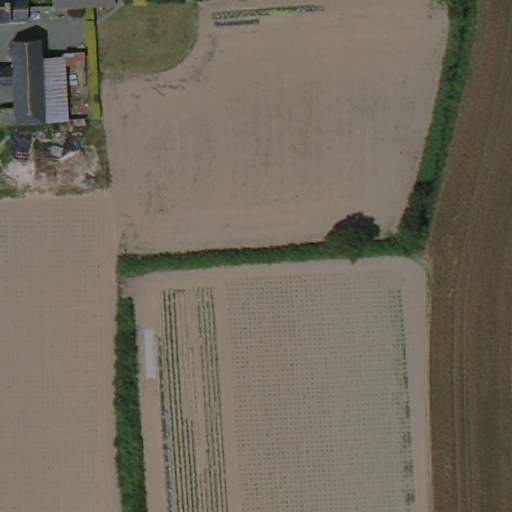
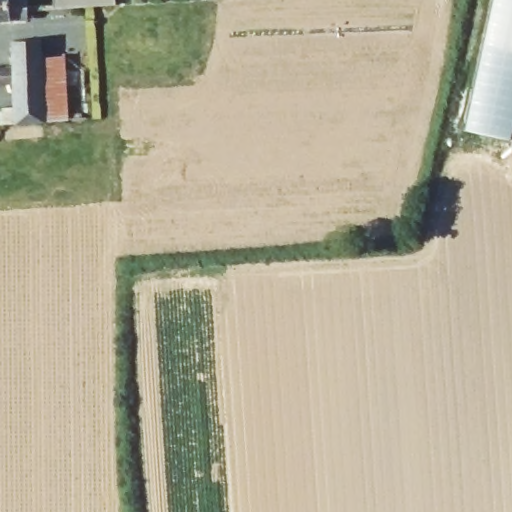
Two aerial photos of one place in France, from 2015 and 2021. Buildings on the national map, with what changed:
unchanged [(17,10),(17,16),(0,18),(0,0),(16,0),(17,10)]
unchanged [(111,6),(77,9),(48,12),(47,0),(110,0),(111,6)]
new [(468,128),(495,0),(512,0),(512,133),(511,139),(468,128)]
unchanged [(31,28),(35,57),(46,123),(0,130),(0,112),(9,110),(5,84),(0,85),(0,56),(4,55),(1,32),(31,28)]
unchanged [(78,52),(88,117),(46,123),(35,57),(78,52)]

